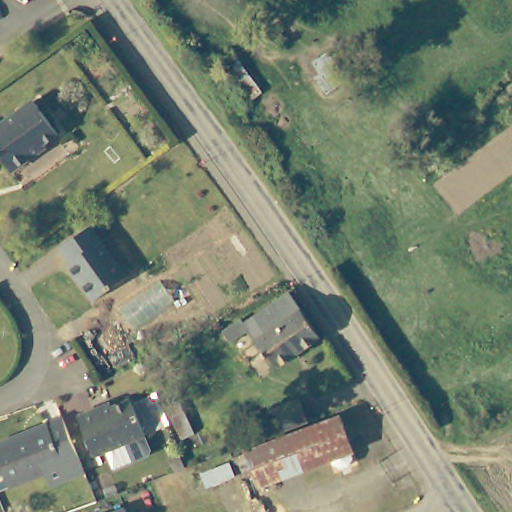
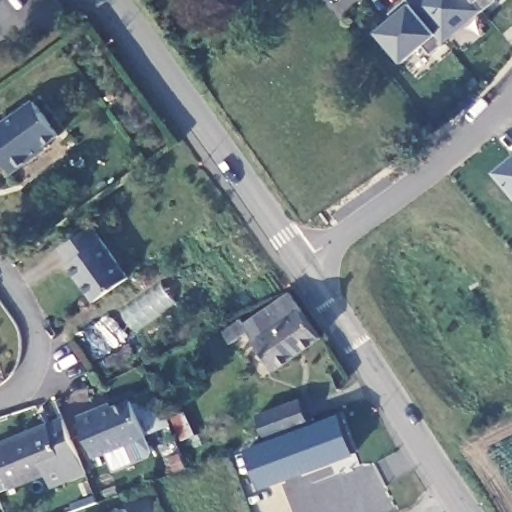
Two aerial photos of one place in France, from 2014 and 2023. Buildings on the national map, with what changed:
new [(430,54),(425,43),(402,63),(373,32),(392,15),(390,12),(405,0),(494,0),(430,54)]
unchanged [(0,159),(0,124),(32,101),(56,135),(42,146),(45,149),(10,174),(0,159)]
new [(512,157),(512,192),(495,172),(512,157)]
unchanged [(94,301),(67,265),(70,262),(60,249),(90,226),(127,277),(94,301)]
unchanged [(323,337),(277,367),(253,331),(235,343),(227,332),(243,321),(246,325),(294,293),(323,337)]
unchanged [(79,415),(125,394),(143,436),(96,457),(79,415)]
unchanged [(269,441),(259,420),(300,402),(311,425),(269,441)]
unchanged [(40,467),(6,481),(0,466),(0,436),(59,412),(80,468),(67,474),(47,483),(40,467)]
unchanged [(269,441),(311,425),(341,414),(355,451),(262,487),(246,449),(269,441)]
unchanged [(125,512),(117,512),(124,510),(125,512)]

